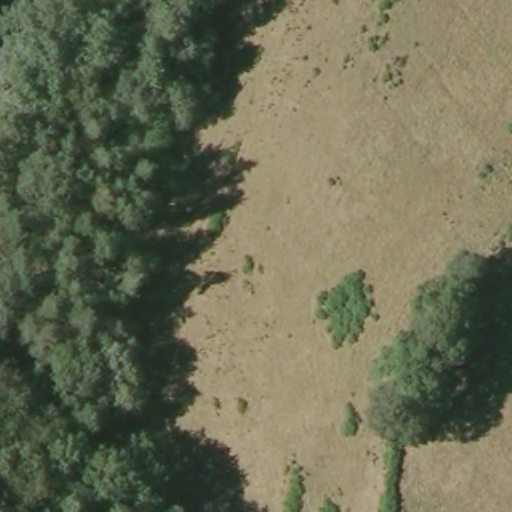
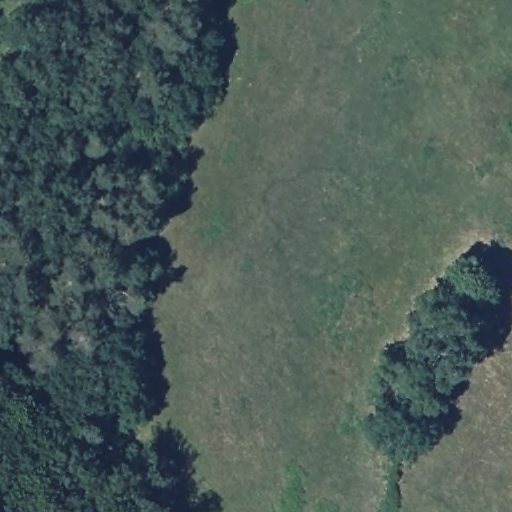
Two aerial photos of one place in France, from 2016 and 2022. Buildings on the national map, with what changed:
unchanged [(476,305),(465,320),(449,309),(460,294),(476,305)]

